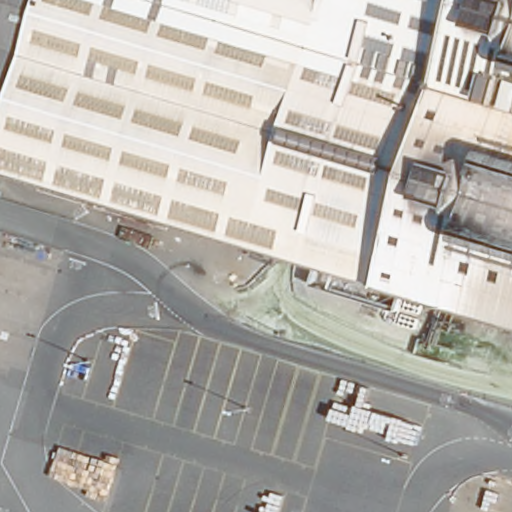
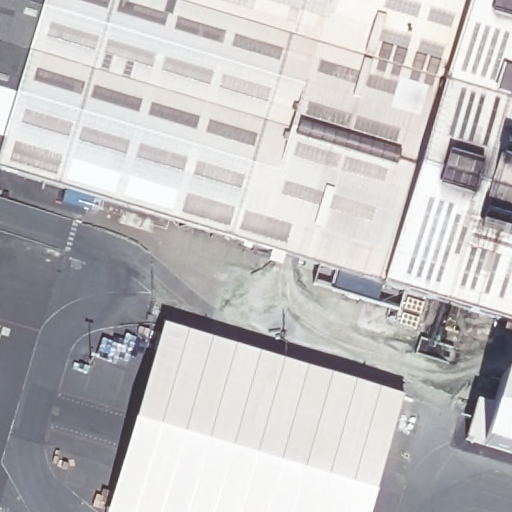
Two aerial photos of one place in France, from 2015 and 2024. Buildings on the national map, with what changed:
unchanged [(512,317),(403,286),(1,162),(0,167),(0,0),(512,0),(512,317)]
new [(374,512),(115,512),(166,327),(406,396),(374,512)]
new [(464,439),(476,402),(492,409),(503,373),(512,376),(512,455),(480,445),(464,439)]

